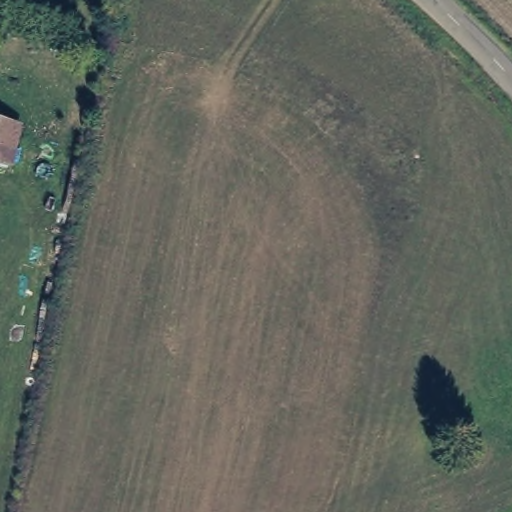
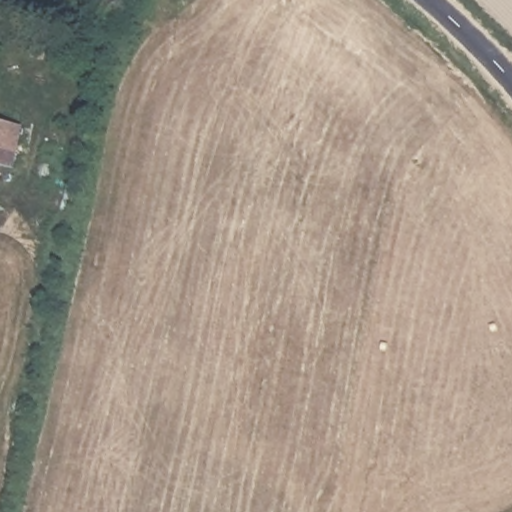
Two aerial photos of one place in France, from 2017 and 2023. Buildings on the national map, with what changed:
unchanged [(23,127),(13,173),(8,183),(0,182),(0,122),(23,127)]

